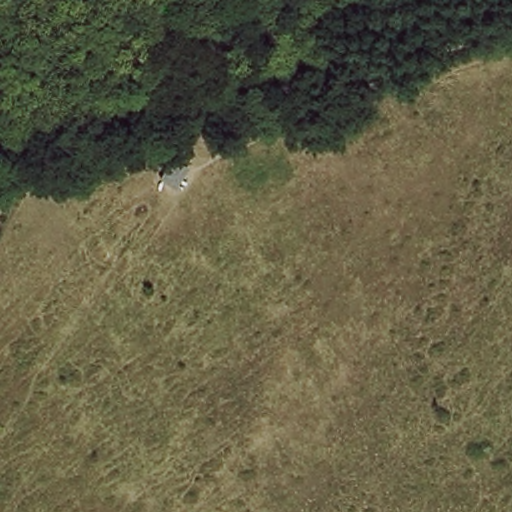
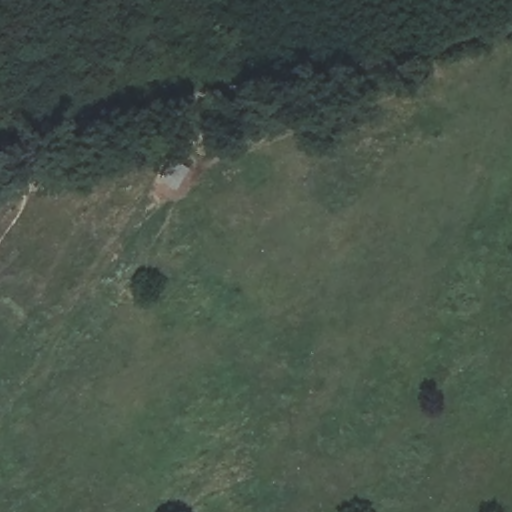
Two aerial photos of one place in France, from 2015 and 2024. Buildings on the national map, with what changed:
unchanged [(168,154),(191,160),(179,194),(155,179),(168,154)]

